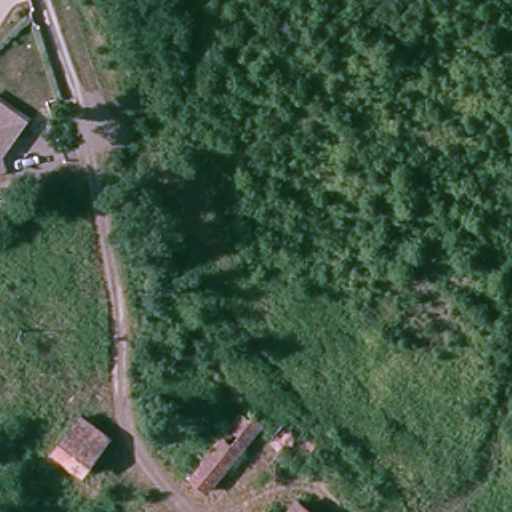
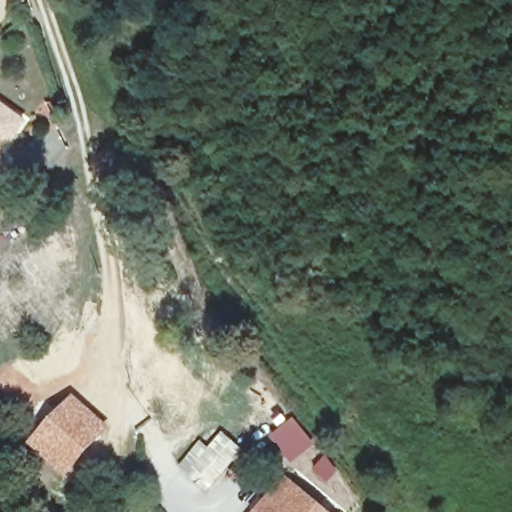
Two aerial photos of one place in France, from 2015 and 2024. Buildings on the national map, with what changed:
unchanged [(14,137),(4,151),(5,165),(0,166),(0,96),(29,119),(14,137)]
new [(110,427),(67,479),(29,445),(74,395),(110,427)]
unchanged [(199,442),(207,450),(243,414),(260,431),(205,486),(180,461),(199,442)]
demolished [(309,447),(297,460),(274,437),(285,425),(309,447)]
demolished [(73,465),(46,445),(60,426),(87,445),(73,465)]
new [(330,512),(253,512),(284,473),(330,512)]
demolished [(299,505),(307,512),(293,512),(299,505)]
demolished [(267,511),(267,512),(266,512),(267,511)]

